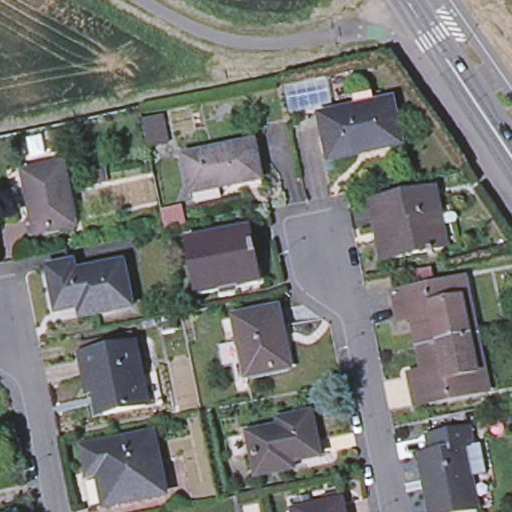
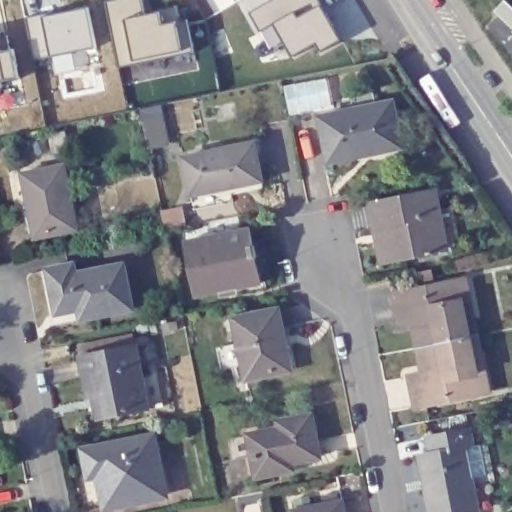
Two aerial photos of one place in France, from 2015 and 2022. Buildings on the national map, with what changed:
new [(119,0),(140,0),(143,16),(157,14),(159,27),(186,21),(192,51),(120,67),(106,2),(119,0)]
new [(339,42),(319,52),(316,45),(292,55),(274,25),(260,32),(249,13),(272,0),(316,0),(339,42)]
new [(87,9),(96,49),(35,61),(25,20),(87,9)]
new [(16,80),(0,81),(0,53),(11,51),(16,80)]
new [(326,74),(331,101),(289,109),(284,82),(326,74)]
unchanged [(397,145),(324,159),(316,113),(387,100),(397,145)]
unchanged [(256,176),(185,191),(176,152),(248,137),(256,176)]
unchanged [(69,224),(30,231),(19,171),(57,164),(69,224)]
unchanged [(448,242),(378,257),(372,224),(366,225),(361,201),(425,189),(429,206),(440,204),(448,242)]
unchanged [(255,277),(192,290),(182,237),(244,224),(255,277)]
unchanged [(131,305),(81,316),(78,305),(56,310),(47,265),(72,260),(75,271),(122,261),(131,305)]
unchanged [(407,345),(401,317),(390,320),(384,291),(456,276),(467,332),(407,345)]
unchanged [(286,365),(244,373),(231,312),(274,304),(286,365)]
unchanged [(472,390),(407,404),(401,373),(412,371),(407,345),(467,332),(471,350),(479,389),(472,390)]
unchanged [(95,413),(90,390),(79,393),(70,355),(125,343),(131,374),(147,371),(154,401),(138,405),(95,413)]
unchanged [(285,462),(287,470),(254,476),(246,432),(280,426),(279,418),(311,412),(319,455),(285,462)]
unchanged [(462,445),(475,506),(448,512),(428,512),(415,453),(426,451),(422,436),(467,427),(470,443),(462,445)]
unchanged [(164,492),(96,506),(84,448),(152,435),(164,492)]
unchanged [(338,495),(341,512),(290,512),(289,505),(338,495)]

